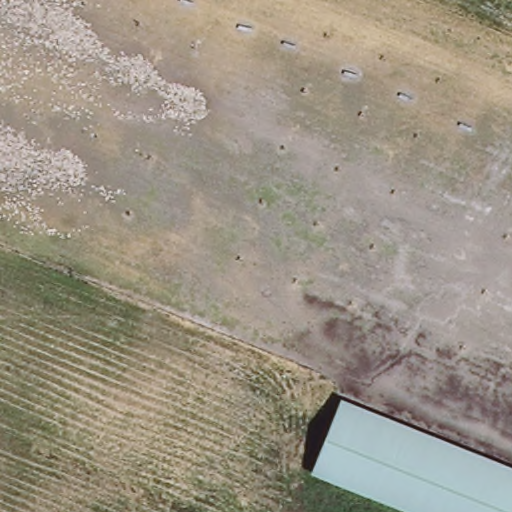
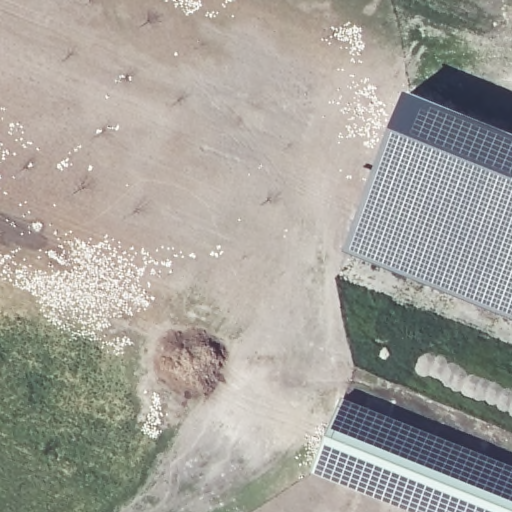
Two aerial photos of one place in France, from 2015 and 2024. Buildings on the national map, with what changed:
new [(409,89),(512,130),(512,317),(478,304),(382,267),(343,251),(409,89)]
unchanged [(411,512),(312,472),(342,398),(512,467),(512,512),(411,512)]

